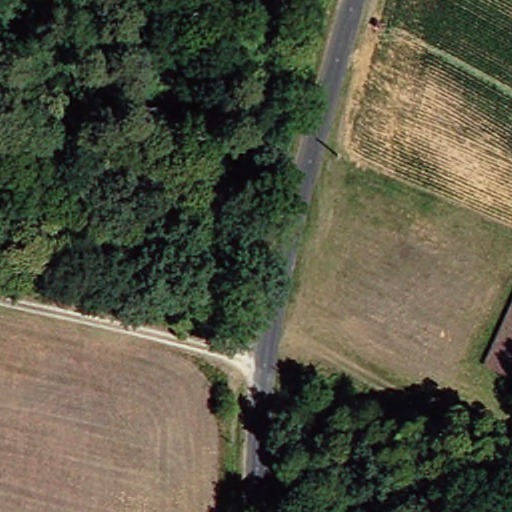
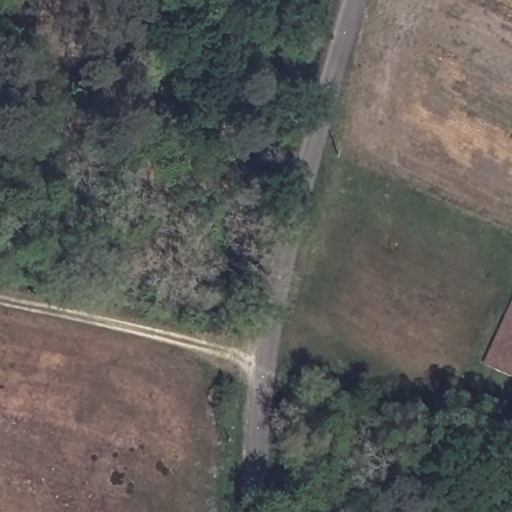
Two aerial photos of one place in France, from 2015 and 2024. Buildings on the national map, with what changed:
unchanged [(490,365),(512,316),(512,367),(509,375),(490,365)]
unchanged [(509,375),(512,367),(512,376),(509,375)]

